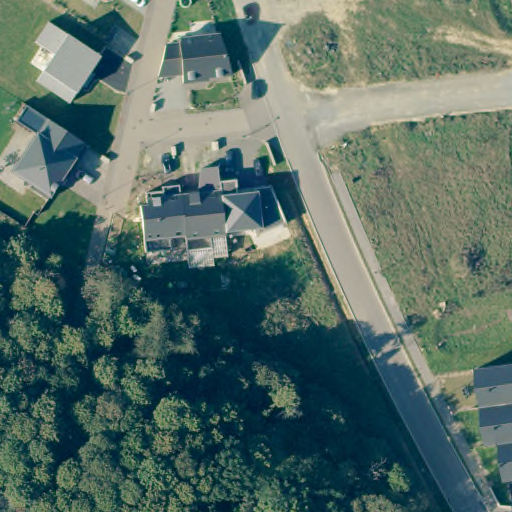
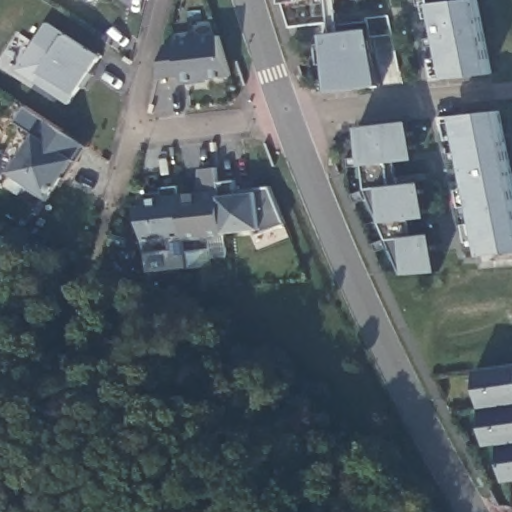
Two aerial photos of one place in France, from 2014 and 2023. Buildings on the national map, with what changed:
new [(286,1),(286,0),(301,0),(286,1)]
new [(448,79),(432,3),(432,0),(476,0),(491,74),(448,79)]
unchanged [(35,81),(43,70),(53,54),(35,41),(47,21),(66,34),(98,55),(74,94),(68,103),(35,81)]
new [(371,29),(382,85),(331,91),(323,34),(371,29)]
unchanged [(165,46),(179,44),(179,40),(219,35),(231,76),(181,85),(180,75),(159,78),(165,46)]
unchanged [(10,171),(33,135),(15,122),(26,106),(87,148),(65,179),(63,177),(49,198),(10,171)]
new [(497,109),(512,185),(512,266),(486,269),(483,255),(480,240),(470,241),(466,223),(475,221),(472,204),(462,207),(458,188),(468,187),(459,137),(449,138),(446,123),(455,123),(453,114),(497,109)]
new [(409,121),(416,159),(395,160),(399,184),(422,182),(429,218),(410,220),(412,237),(432,234),(439,272),(405,274),(401,274),(365,189),(361,163),(358,127),(409,121)]
unchanged [(139,205),(146,204),(146,195),(160,194),(160,189),(179,187),(180,194),(198,192),(200,170),(215,169),(218,184),(236,182),(237,192),(271,187),(284,224),(255,234),(252,228),(224,230),(224,234),(211,236),(212,247),(186,249),(185,237),(169,238),(169,249),(144,252),(139,205)]
unchanged [(501,444),(485,446),(476,369),(512,365),(512,480),(506,481),(501,444)]

